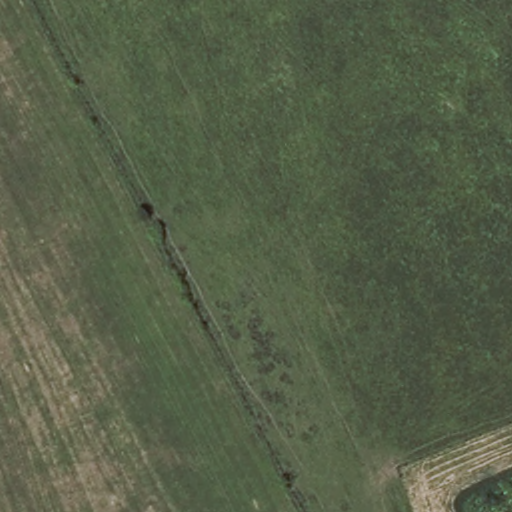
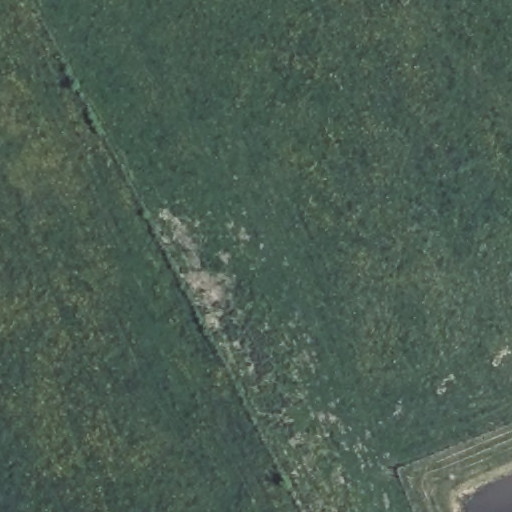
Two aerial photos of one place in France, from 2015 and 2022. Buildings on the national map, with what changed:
[]

